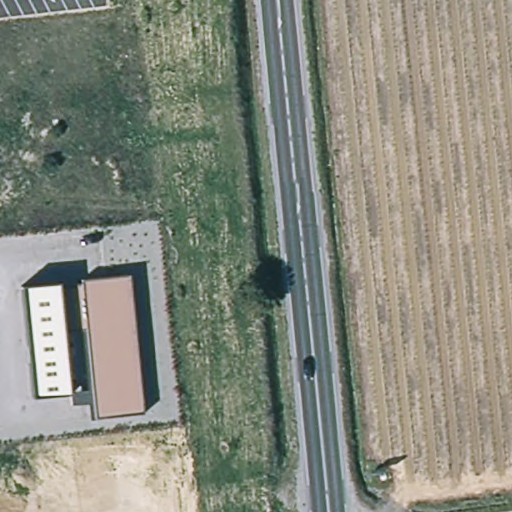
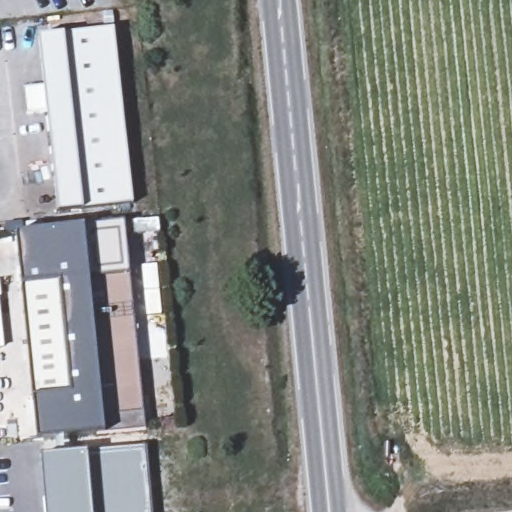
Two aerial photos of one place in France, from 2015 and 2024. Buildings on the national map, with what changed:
new [(133,213),(58,221),(47,121),(27,124),(24,98),(45,96),(39,46),(114,38),(133,213)]
new [(90,280),(82,281),(82,284),(57,286),(57,282),(22,286),(18,233),(85,225),(123,222),(128,275),(90,280)]
unchanged [(95,416),(90,418),(87,403),(72,404),(71,392),(90,388),(86,327),(62,331),(68,392),(32,396),(22,286),(57,282),(57,286),(82,284),(82,281),(128,275),(142,411),(95,416)]
new [(0,315),(3,347),(0,348),(0,315)]
new [(32,396),(68,392),(62,331),(86,327),(90,388),(71,392),(72,404),(87,403),(90,418),(95,416),(104,415),(142,411),(145,430),(105,435),(37,440),(32,396)]
new [(86,451),(142,447),(149,512),(46,512),(41,457),(86,451)]

